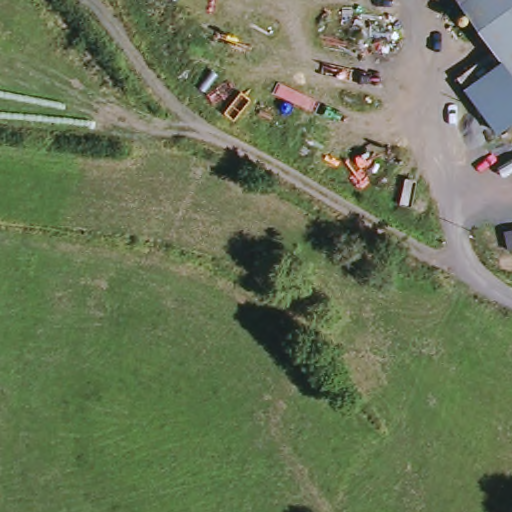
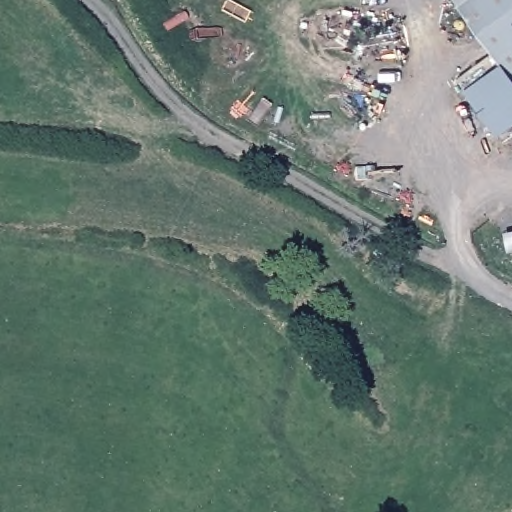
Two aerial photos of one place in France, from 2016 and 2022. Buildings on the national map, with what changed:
unchanged [(474,92),(509,64),(462,0),(512,0),(512,130),(505,135),(474,92)]

